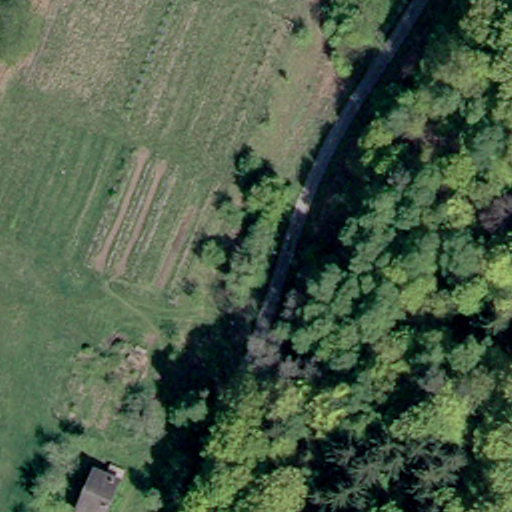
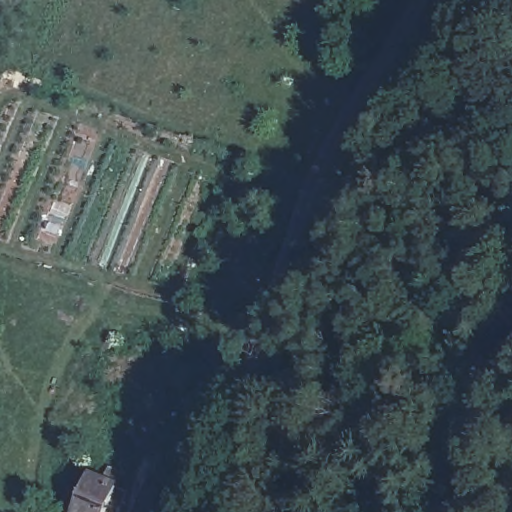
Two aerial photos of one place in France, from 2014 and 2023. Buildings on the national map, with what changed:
unchanged [(102,482),(105,472),(118,476),(106,512),(76,512),(87,477),(102,482)]

